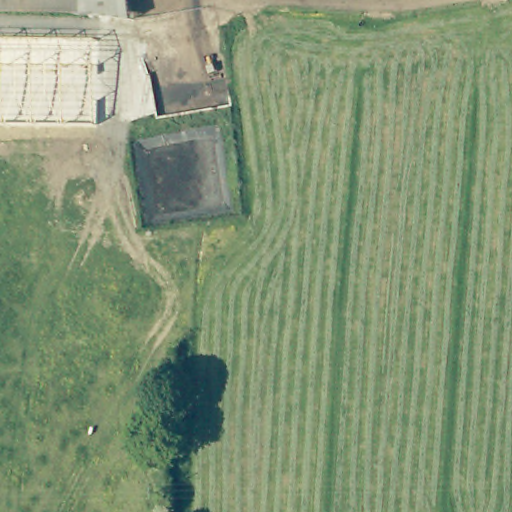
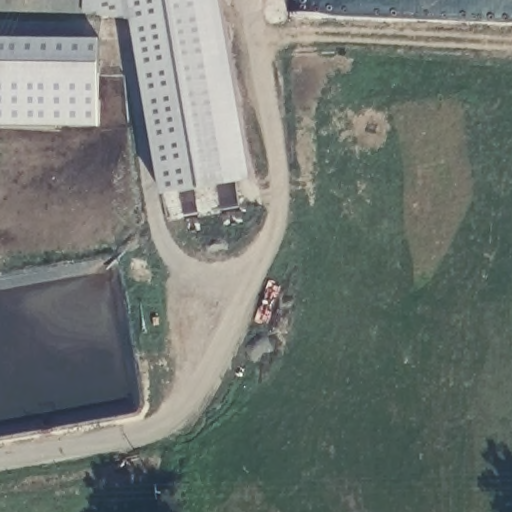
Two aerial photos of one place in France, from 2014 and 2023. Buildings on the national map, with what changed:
demolished [(100,0),(100,13),(0,5),(0,0),(100,0)]
new [(220,0),(252,180),(162,195),(131,18),(83,14),(0,13),(0,0),(220,0)]
new [(99,39),(99,127),(0,124),(0,37),(99,39)]

